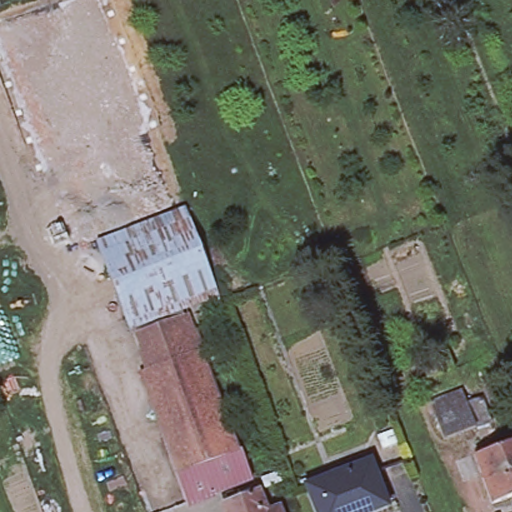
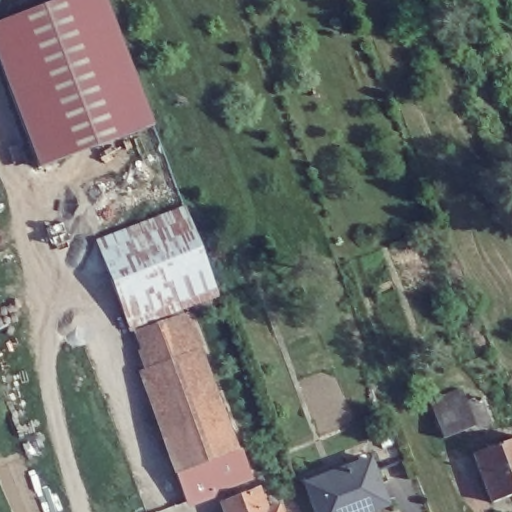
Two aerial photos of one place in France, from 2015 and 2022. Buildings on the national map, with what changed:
new [(154,125),(38,170),(0,70),(0,22),(58,0),(107,0),(154,125)]
unchanged [(218,291),(127,326),(96,241),(185,206),(218,291)]
unchanged [(135,329),(188,310),(202,347),(198,348),(148,366),(135,329)]
unchanged [(176,471),(140,369),(148,366),(198,348),(237,449),(241,447),(252,478),(215,491),(187,501),(176,471)]
unchanged [(452,367),(427,377),(420,360),(446,350),(452,367)]
unchanged [(436,415),(467,403),(481,398),(490,421),(475,426),(445,438),(436,415)]
unchanged [(473,453),(485,449),(512,439),(512,494),(503,498),(492,502),(473,453)]
unchanged [(316,481),(360,464),(371,460),(388,504),(377,508),(368,512),(318,512),(307,485),(316,481)]
unchanged [(231,512),(226,499),(260,486),(268,509),(280,504),(282,512),(231,512)]

